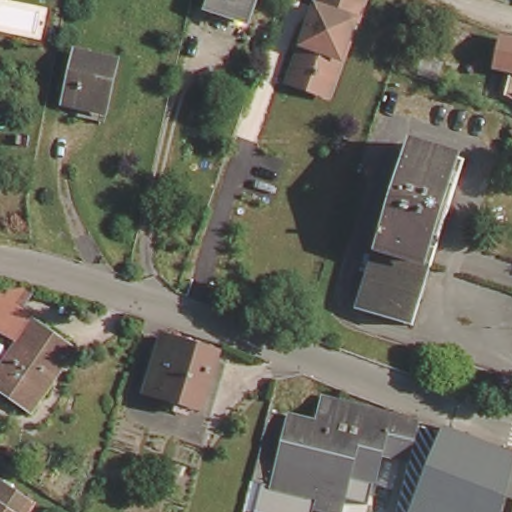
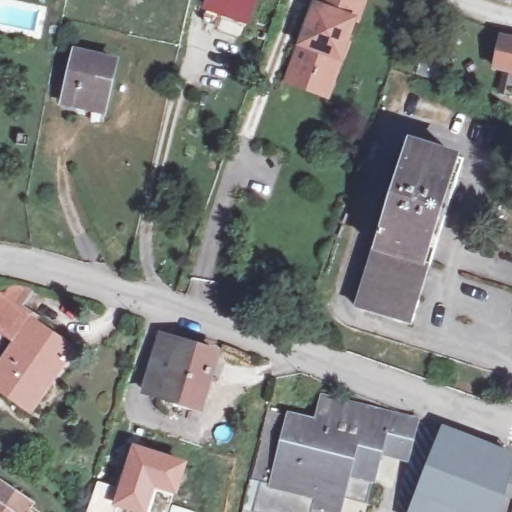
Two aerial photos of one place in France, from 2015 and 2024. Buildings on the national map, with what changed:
unchanged [(220,0),(262,0),(253,27),(216,14),(220,0)]
unchanged [(318,5),(320,6),(322,0),(364,0),(358,20),(355,19),(334,78),(329,93),(291,80),(296,65),(318,5)]
unchanged [(504,47),(512,48),(512,80),(498,77),(504,47)]
unchanged [(83,57),(120,66),(108,116),(71,107),(83,57)]
unchanged [(382,234),(376,232),(379,222),(385,223),(390,207),(401,172),(394,171),(398,159),(404,161),(409,145),(465,161),(434,267),(416,327),(408,325),(359,311),(382,234)]
unchanged [(76,347),(31,416),(0,394),(0,373),(20,343),(3,332),(0,330),(0,306),(3,300),(18,306),(35,317),(34,321),(76,347)]
unchanged [(171,344),(209,357),(194,408),(155,397),(171,344)]
unchanged [(343,512),(317,512),(315,512),(317,502),(253,486),(271,415),(318,426),(324,402),(411,422),(421,425),(413,462),(403,461),(383,456),(376,487),(374,496),(349,490),(343,512)]
unchanged [(479,443),(504,453),(512,456),(512,459),(511,463),(512,464),(512,496),(504,495),(502,506),(499,512),(462,512),(436,502),(419,496),(443,430),(479,443)]
new [(188,462),(177,497),(157,491),(149,512),(129,512),(115,507),(113,512),(108,512),(132,443),(188,462)]
unchanged [(32,503),(27,512),(0,512),(0,484),(0,483),(32,503)]
unchanged [(419,496),(436,502),(462,512),(417,512),(412,510),(419,496)]
new [(198,512),(168,512),(171,504),(198,512)]

